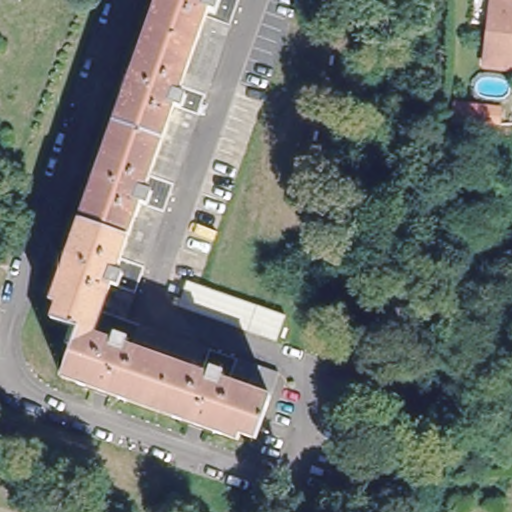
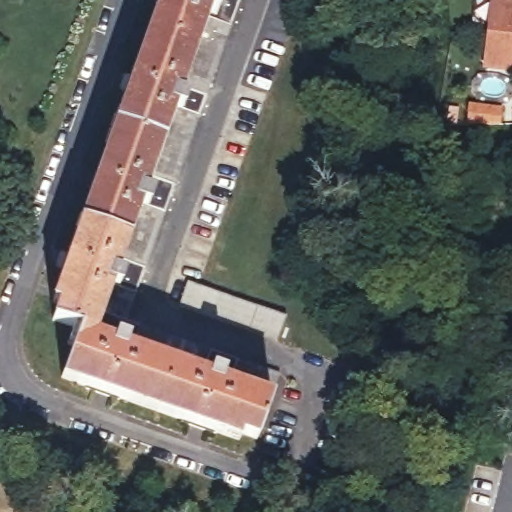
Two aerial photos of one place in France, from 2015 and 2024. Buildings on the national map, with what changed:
unchanged [(255,433),(241,431),(235,437),(61,376),(77,326),(51,315),(56,300),(49,296),(152,0),(234,0),(127,318),(277,373),(255,433)]
unchanged [(512,5),(512,74),(488,71),(498,3),(512,5)]
unchanged [(495,124),(464,119),(450,116),(451,101),(466,104),(497,109),(495,124)]
unchanged [(282,311),(273,338),(180,305),(189,281),(282,311)]

